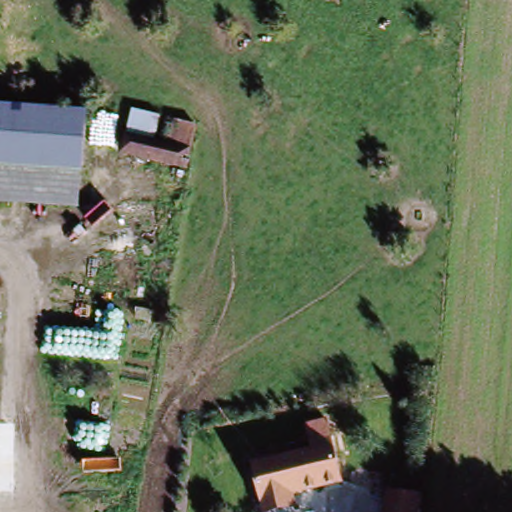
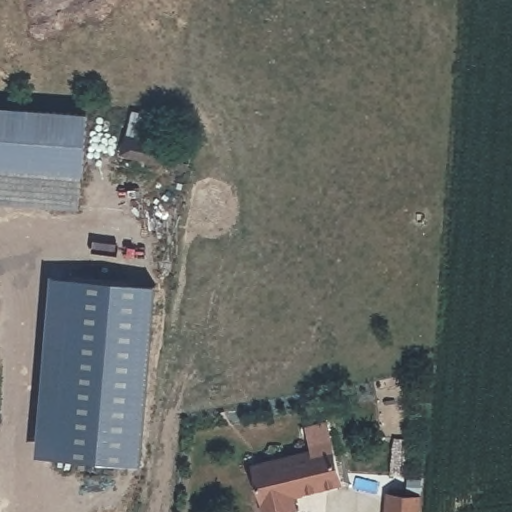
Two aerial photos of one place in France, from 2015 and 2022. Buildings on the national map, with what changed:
unchanged [(91,112),(81,206),(0,198),(0,103),(91,112)]
unchanged [(194,144),(129,131),(133,113),(198,126),(194,144)]
unchanged [(194,144),(188,168),(123,158),(129,131),(194,144)]
new [(64,273),(148,282),(130,462),(45,454),(64,273)]
unchanged [(285,512),(263,512),(251,469),(311,453),(309,446),(329,441),(339,484),(291,497),(293,505),(294,509),(285,512)]
unchanged [(422,496),(420,512),(383,512),(385,491),(422,496)]

